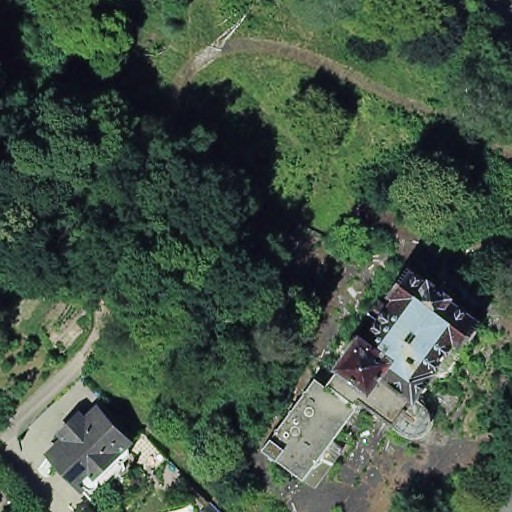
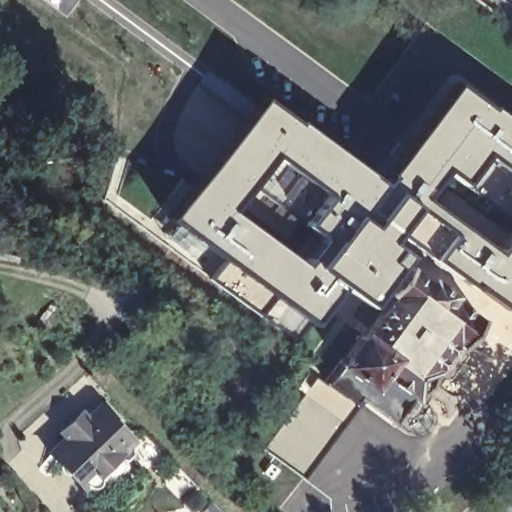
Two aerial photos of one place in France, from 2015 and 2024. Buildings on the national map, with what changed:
demolished [(460,30),(437,12),(445,0),(480,0),(482,1),(460,30)]
new [(370,305),(342,286),(313,323),(172,218),(261,98),(382,184),(388,175),(386,174),(453,82),(450,81),(456,73),(487,91),(483,98),(495,106),(493,110),(512,124),(512,224),(462,183),(442,168),(422,198),(495,252),(512,228),(512,304),(502,319),(472,297),(477,291),(395,234),(388,241),(410,259),(405,268),(392,286),(387,283),(370,305)]
unchanged [(428,413),(430,419),(428,425),(426,429),(422,433),(418,435),(412,436),(406,434),(402,432),(395,426),(362,402),(359,400),(355,406),(325,385),(340,365),(339,364),(359,336),(363,339),(377,320),(370,315),(379,303),(385,308),(391,300),(385,295),(405,268),(427,284),(428,282),(449,297),(447,299),(480,322),(462,348),(464,350),(464,359),(450,381),(440,382),(431,376),(414,399),(426,408),(428,413)]
unchanged [(355,406),(359,400),(362,402),(303,482),(260,451),(313,377),(325,385),(355,406)]
unchanged [(93,503),(82,493),(77,486),(55,463),(48,457),(54,452),(65,441),(60,436),(80,416),(85,421),(97,410),(132,445),(128,448),(130,457),(123,464),(127,472),(93,503)]
unchanged [(210,504),(217,512),(202,512),(210,504)]

